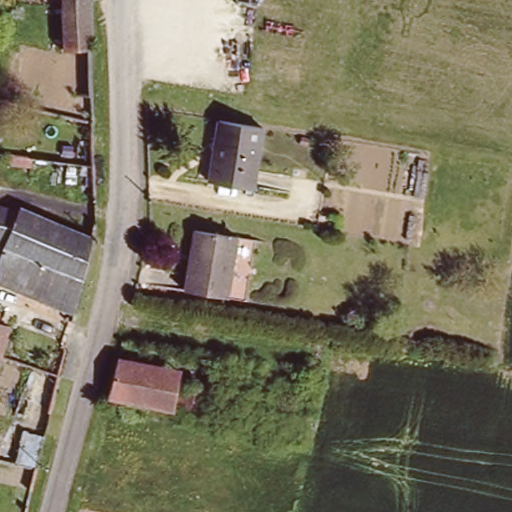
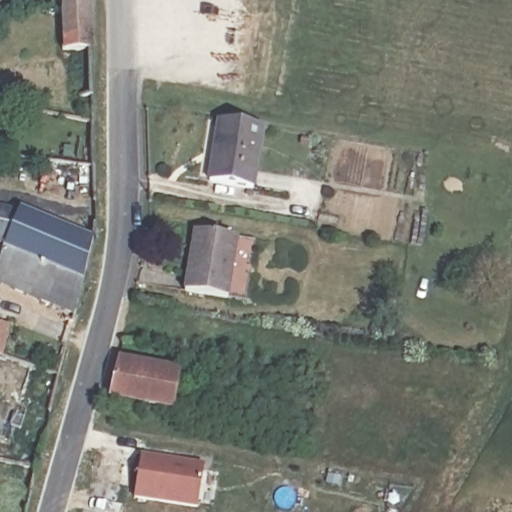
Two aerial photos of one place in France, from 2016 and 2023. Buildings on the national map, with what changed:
unchanged [(90,50),(57,50),(57,0),(90,0),(90,50)]
unchanged [(250,195),(207,188),(217,126),(260,133),(250,195)]
unchanged [(92,188),(27,178),(27,171),(7,168),(7,172),(0,171),(0,159),(91,171),(92,188)]
unchanged [(0,243),(0,211),(17,213),(0,243)]
unchanged [(0,243),(17,213),(17,212),(89,249),(79,289),(3,250),(0,248),(0,243)]
unchanged [(238,242),(229,303),(187,297),(195,236),(238,242)]
unchanged [(70,324),(0,287),(0,263),(3,250),(79,289),(70,324)]
unchanged [(0,327),(5,329),(0,347),(0,327)]
unchanged [(117,365),(177,374),(175,383),(170,415),(107,403),(117,365)]
unchanged [(175,383),(211,389),(205,423),(170,417),(170,415),(175,383)]
new [(205,466),(197,511),(134,499),(141,455),(205,466)]

